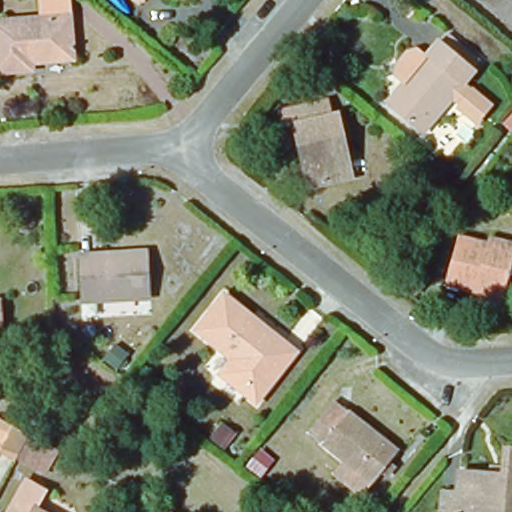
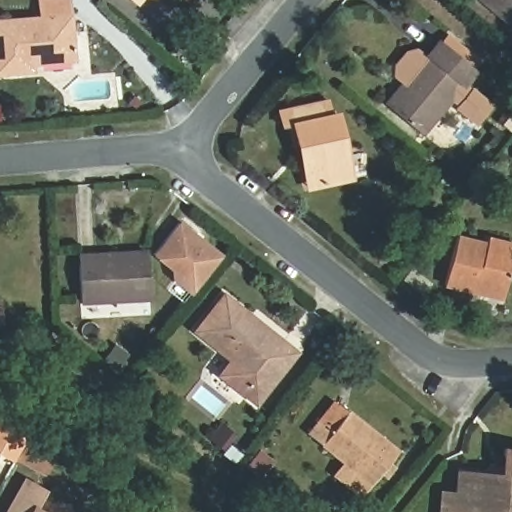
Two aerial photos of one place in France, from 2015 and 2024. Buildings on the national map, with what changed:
unchanged [(36,0),(71,0),(76,62),(34,65),(34,75),(0,76),(0,21),(37,18),(36,0)]
unchanged [(131,0),(152,0),(142,10),(131,0)]
unchanged [(153,0),(162,0),(158,5),(153,0)]
unchanged [(486,0),(512,0),(512,21),(486,0)]
unchanged [(405,80),(441,38),(478,69),(467,82),(475,89),(477,86),(496,102),(484,117),(465,102),(467,99),(458,92),(423,135),(397,112),(386,102),(405,80)]
unchanged [(300,154),(295,122),(285,124),(282,105),(332,99),(334,115),(344,114),(355,182),(319,189),(306,191),(300,154)]
new [(192,294),(173,277),(173,269),(155,255),(182,220),(225,256),(192,294)]
unchanged [(459,237),(487,245),(489,237),(512,243),(512,259),(500,303),(444,288),(459,237)]
unchanged [(152,302),(86,305),(84,267),(84,255),(127,252),(150,252),(152,302)]
unchanged [(256,407),(221,379),(232,364),(196,336),(223,300),(249,320),(281,344),(296,356),(256,407)]
unchanged [(4,330),(0,330),(0,302),(1,302),(4,330)]
unchanged [(332,405),(397,455),(369,491),(305,442),(332,405)]
unchanged [(46,478),(0,453),(0,421),(60,452),(46,478)]
unchanged [(442,493),(458,495),(459,472),(502,473),(504,450),(512,451),(512,512),(441,512),(442,493)]
unchanged [(47,496),(38,512),(13,512),(29,484),(47,496)]

